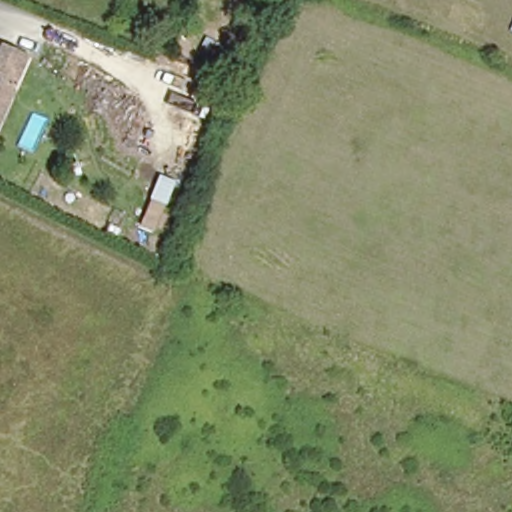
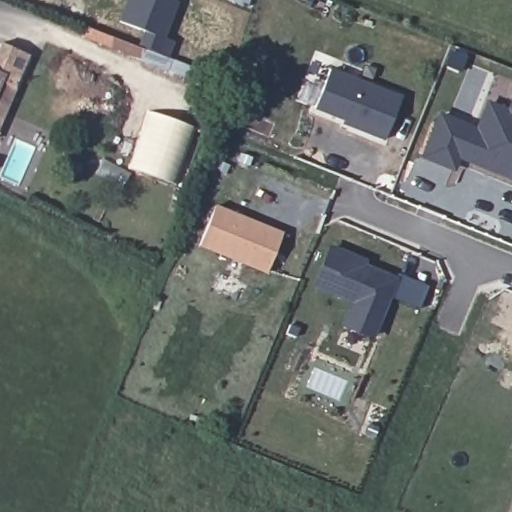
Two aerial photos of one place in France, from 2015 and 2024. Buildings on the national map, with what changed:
new [(174,41),(167,56),(136,45),(141,30),(117,20),(125,0),(172,0),(177,2),(164,37),(174,41)]
unchanged [(7,40),(35,54),(19,85),(0,124),(0,53),(7,40)]
new [(331,70),(402,98),(385,140),(350,125),(351,122),(316,109),(331,70)]
new [(462,157),(457,171),(427,159),(441,124),(443,117),(474,130),(485,102),(492,105),(512,113),(512,178),(470,161),(462,157)]
new [(282,233),(266,272),(199,245),(215,206),(282,233)]
new [(363,266),(381,272),(397,280),(373,336),(347,325),(357,301),(317,285),(332,248),(366,261),(363,266)]
new [(382,410),(371,436),(358,431),(368,405),(382,410)]

